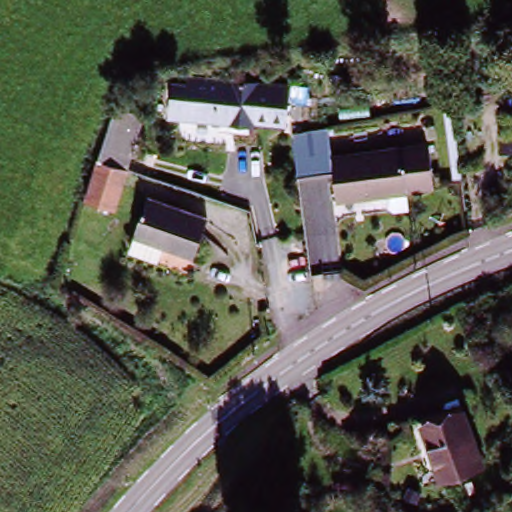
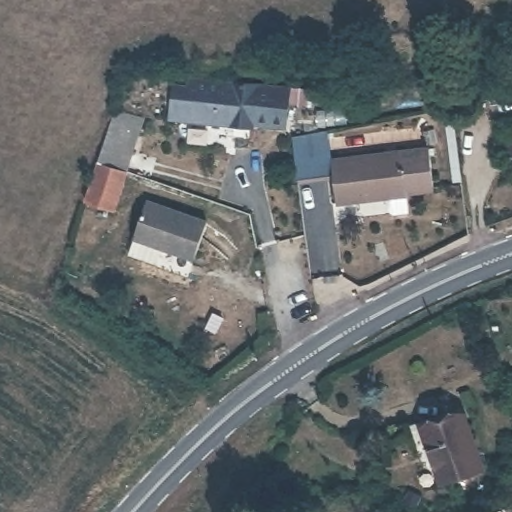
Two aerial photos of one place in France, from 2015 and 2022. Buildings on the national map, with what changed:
unchanged [(312,92),(310,107),(293,106),(290,131),(257,127),(251,132),(173,122),(177,86),(189,86),(192,79),(312,92)]
unchanged [(131,112),(118,163),(121,164),(130,167),(120,208),(94,202),(105,159),(117,109),(131,112)]
unchanged [(512,127),(512,131),(511,127),(512,127)]
unchanged [(331,136),(334,162),(335,177),(305,180),(301,138),(331,136)]
unchanged [(435,154),(438,194),(407,197),(408,200),(337,205),(335,177),(334,162),(435,154)]
unchanged [(131,257),(136,244),(150,204),(210,224),(195,264),(165,254),(160,267),(131,257)]
unchanged [(442,485),(420,432),(467,420),(486,471),(442,485)]

